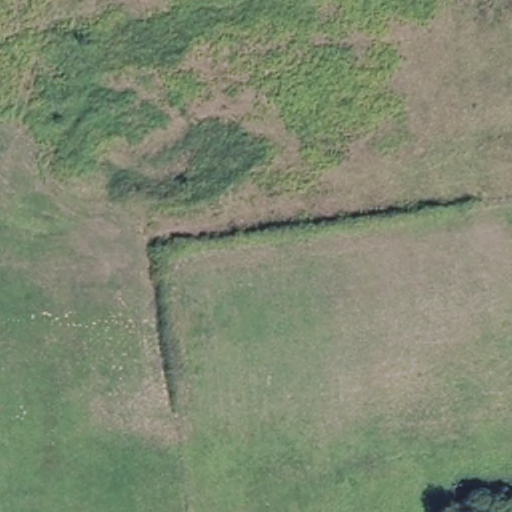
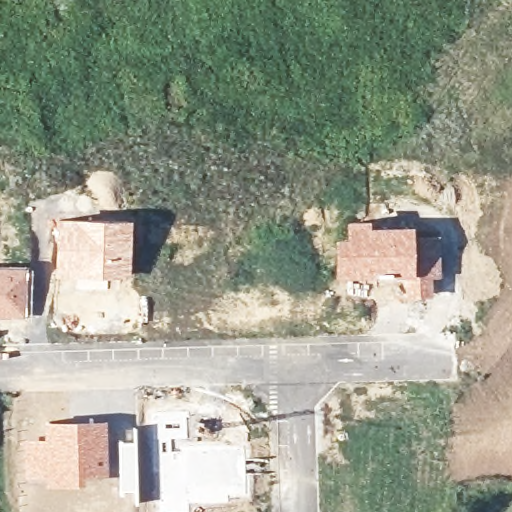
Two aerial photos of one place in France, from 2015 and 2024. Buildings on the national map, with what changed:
new [(54,216),(131,219),(130,277),(51,282),(54,216)]
new [(344,236),(344,220),(368,218),(369,225),(413,224),(414,235),(439,234),(441,277),(431,277),(432,295),(408,296),(408,291),(415,290),(415,277),(395,277),(395,271),(374,271),(374,277),(333,277),(333,237),(344,236)]
new [(28,263),(27,320),(0,319),(0,263),(28,263)]
new [(186,410),(187,441),(180,441),(181,453),(158,455),(153,411),(186,410)]
new [(43,438),(43,421),(106,418),(106,472),(84,475),(84,482),(22,481),(22,439),(43,438)]
new [(122,438),(121,427),(134,426),(137,491),(118,491),(116,438),(122,438)]
new [(227,499),(188,501),(188,512),(160,512),(158,455),(181,453),(181,450),(243,448),(245,492),(227,492),(227,499)]

